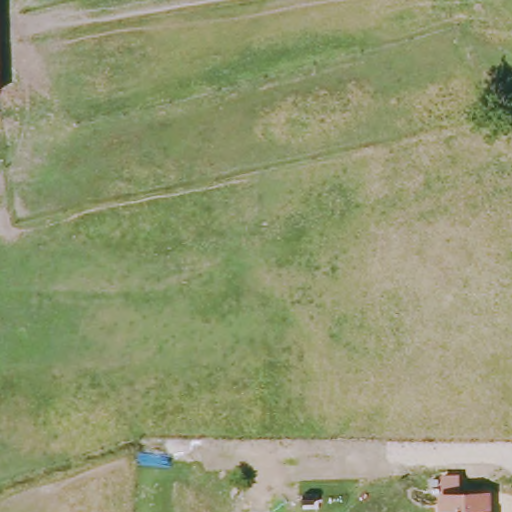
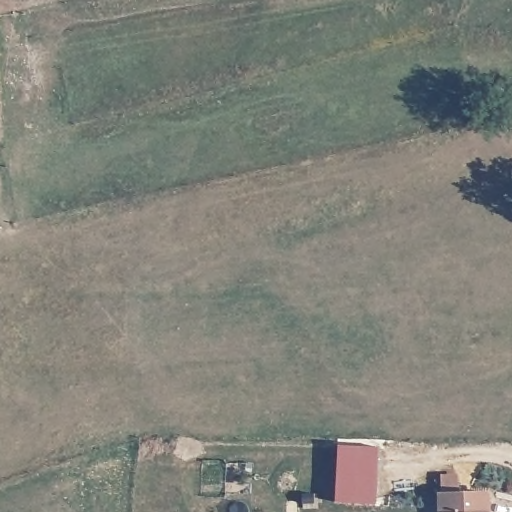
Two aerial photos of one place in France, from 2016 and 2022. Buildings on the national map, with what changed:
new [(371,447),(372,500),(340,500),(339,447),(371,447)]
unchanged [(442,497),(488,496),(489,512),(442,512),(442,497)]

